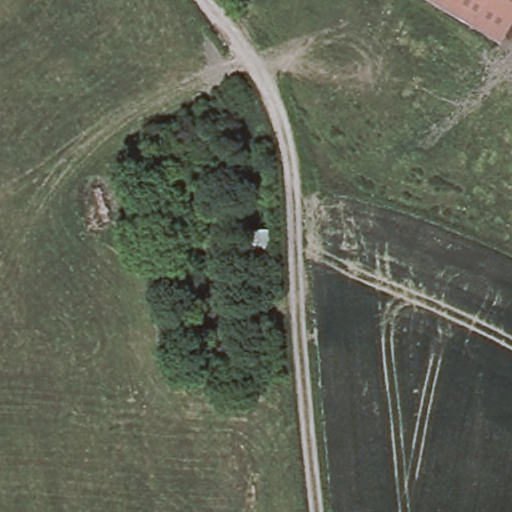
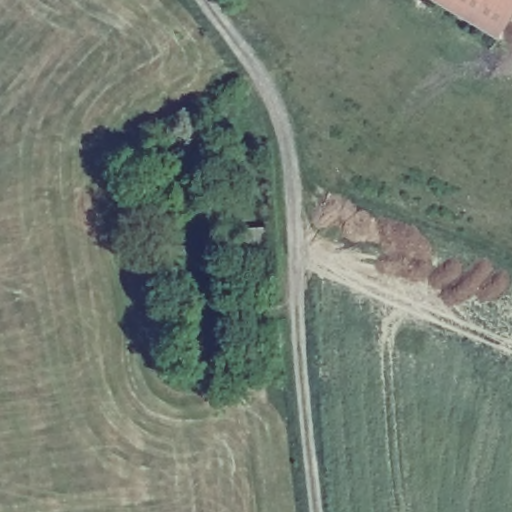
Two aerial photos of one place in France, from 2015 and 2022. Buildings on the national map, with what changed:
unchanged [(512,23),(501,42),(430,0),(512,0),(512,23)]

